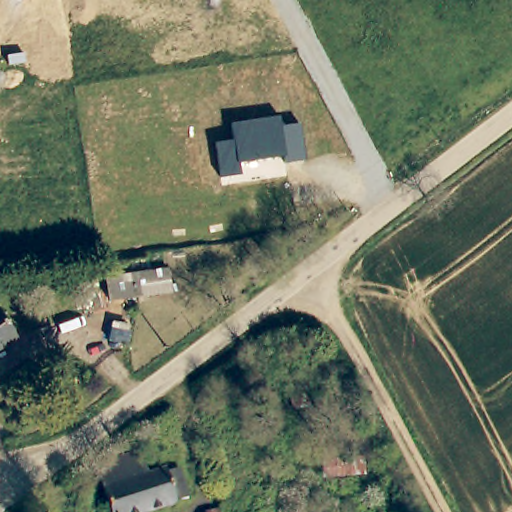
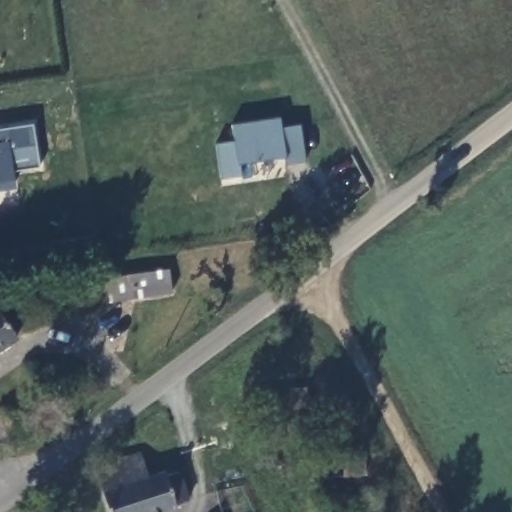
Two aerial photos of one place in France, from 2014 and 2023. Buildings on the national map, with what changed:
unchanged [(287,163),(286,156),(239,163),(240,175),(220,178),(215,144),(235,141),(232,124),(280,116),(282,128),(300,125),(305,161),(287,163)]
new [(14,168),(17,188),(0,190),(0,126),(32,120),(40,165),(14,168)]
unchanged [(175,287),(114,295),(110,272),(172,264),(175,287)]
unchanged [(17,335),(0,347),(0,311),(17,335)]
unchanged [(97,467),(143,454),(150,477),(167,472),(168,475),(180,470),(190,504),(167,512),(145,512),(138,482),(105,492),(97,467)]
unchanged [(111,512),(105,492),(138,482),(145,512),(111,512)]

